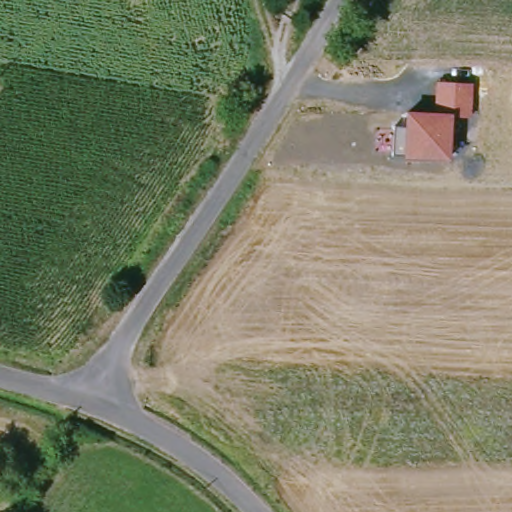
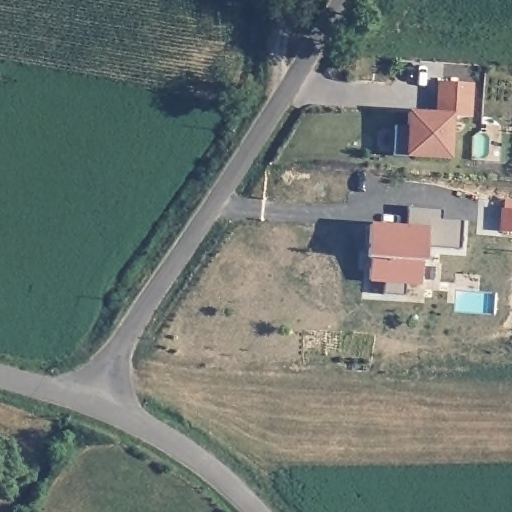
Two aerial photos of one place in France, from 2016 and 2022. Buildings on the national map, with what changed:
unchanged [(434,114),(436,82),(472,84),(472,119),(452,118),(450,162),(403,160),(393,157),(394,127),(404,127),(405,112),(434,114)]
new [(426,245),(425,263),(422,283),(405,283),(404,293),(384,292),(384,282),(370,280),(371,260),(367,260),(369,225),(407,227),(408,206),(444,209),(443,219),(464,220),(463,248),(426,245)]

